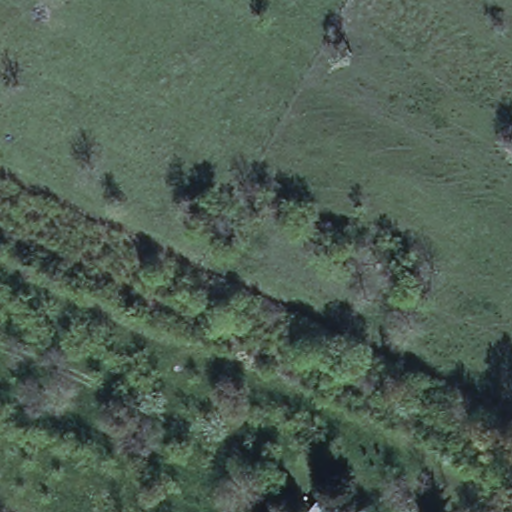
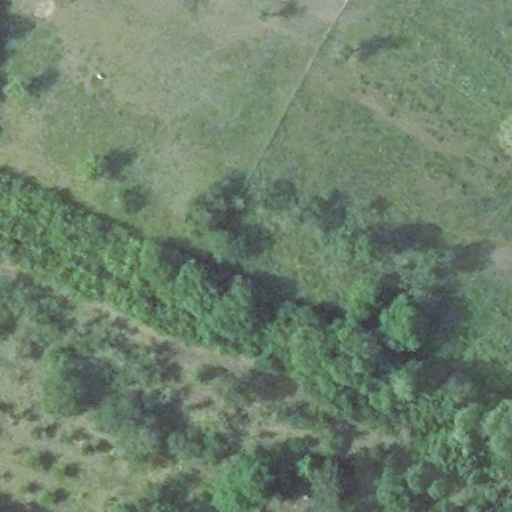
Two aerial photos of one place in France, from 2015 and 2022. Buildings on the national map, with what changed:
[]

